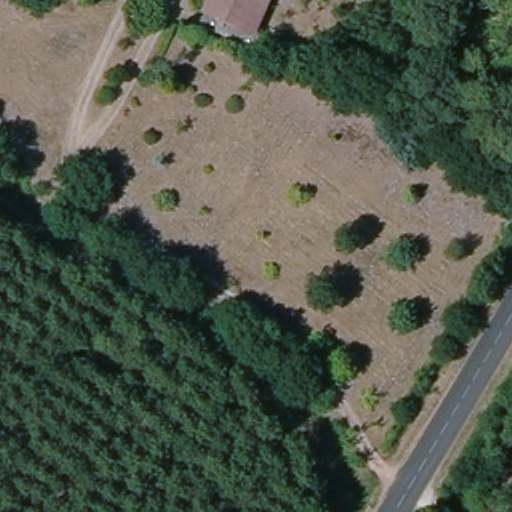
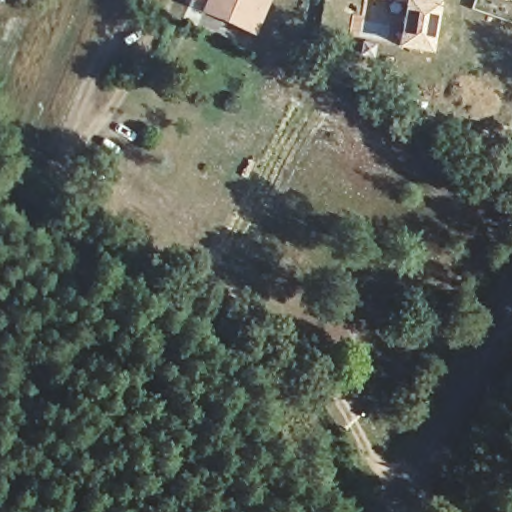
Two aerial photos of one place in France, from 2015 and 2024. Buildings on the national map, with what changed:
unchanged [(0,0),(34,0),(32,12),(0,1),(0,0)]
unchanged [(257,34),(205,16),(210,0),(269,0),(257,34)]
new [(395,1),(386,0),(395,0),(395,1)]
new [(398,34),(402,0),(427,0),(441,2),(433,41),(413,38),(412,40),(408,48),(396,47),(398,34)]
new [(441,2),(427,0),(442,0),(441,2)]

